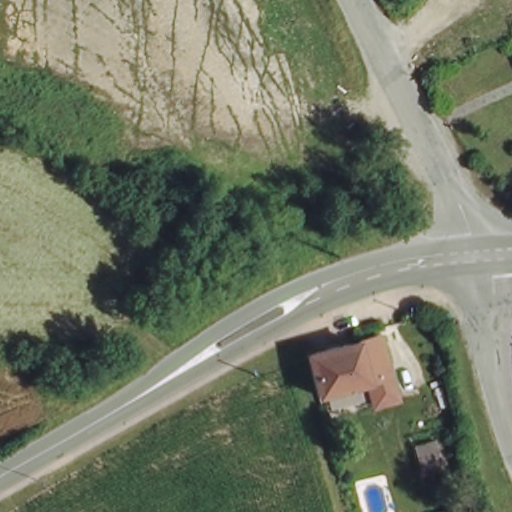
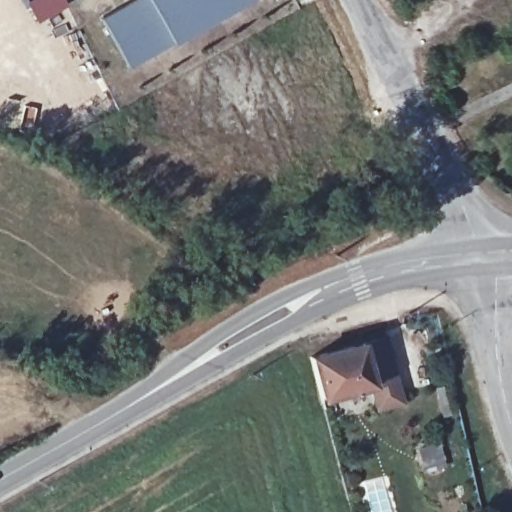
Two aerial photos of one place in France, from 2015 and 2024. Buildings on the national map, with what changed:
new [(126,0),(251,0),(174,41),(173,37),(123,65),(97,15),(126,0)]
unchanged [(374,386),(324,399),(313,359),(364,345),(374,386)]

